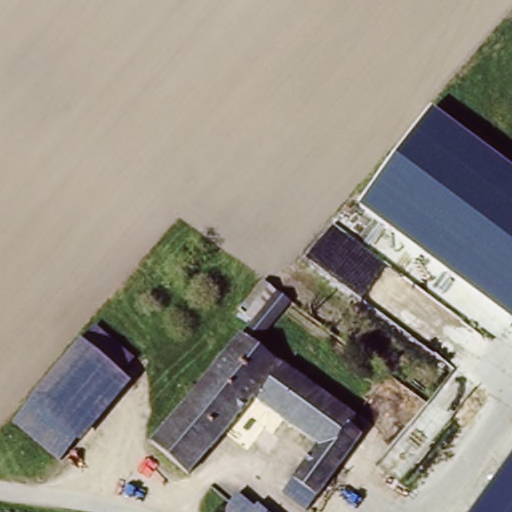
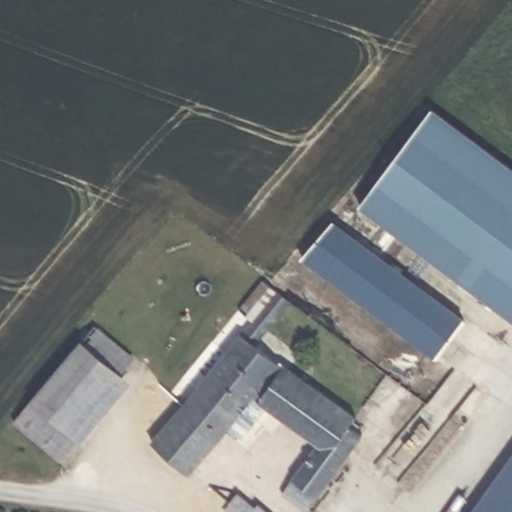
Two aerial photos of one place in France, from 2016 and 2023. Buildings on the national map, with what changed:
unchanged [(434,109),(512,167),(512,321),(360,205),(434,109)]
new [(435,360),(301,260),(334,222),(465,320),(435,360)]
new [(260,344),(257,343),(243,332),(251,323),(237,310),(262,279),(291,304),(260,344)]
unchanged [(357,418),(365,441),(303,512),(276,498),(283,484),(313,446),(255,399),(190,479),(149,439),(236,327),(357,418)]
unchanged [(71,446),(65,440),(50,459),(15,432),(90,332),(127,359),(114,377),(120,381),(71,446)]
unchanged [(512,457),(512,512),(472,512),(512,457)]
unchanged [(207,491),(219,477),(260,512),(232,512),(207,491)]

